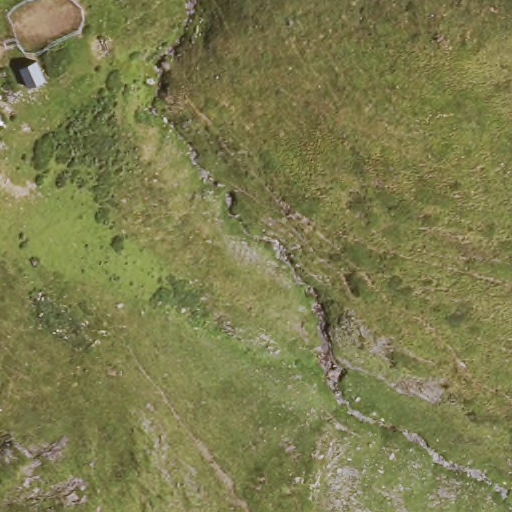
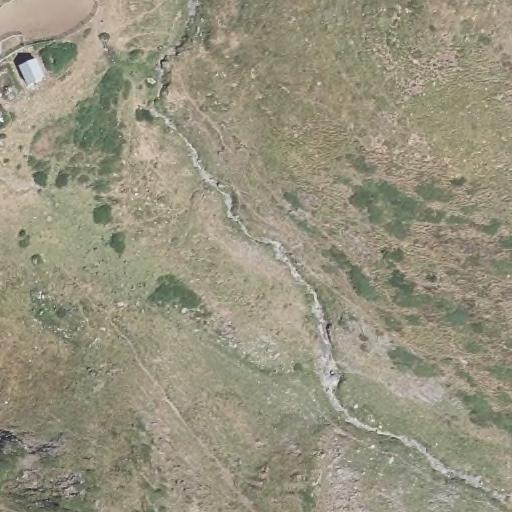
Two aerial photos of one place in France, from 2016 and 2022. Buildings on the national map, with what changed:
unchanged [(46,67),(49,76),(29,85),(18,64),(38,54),(46,67)]

